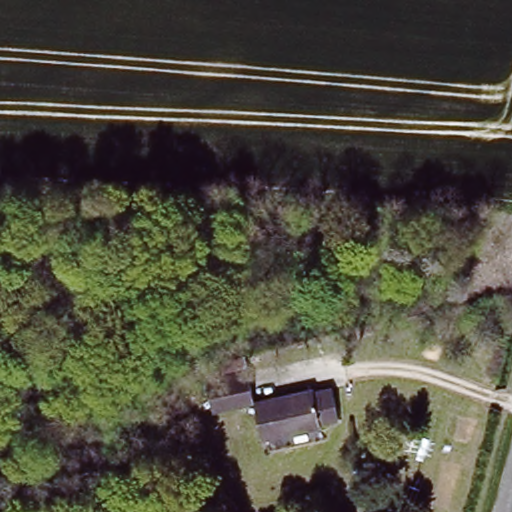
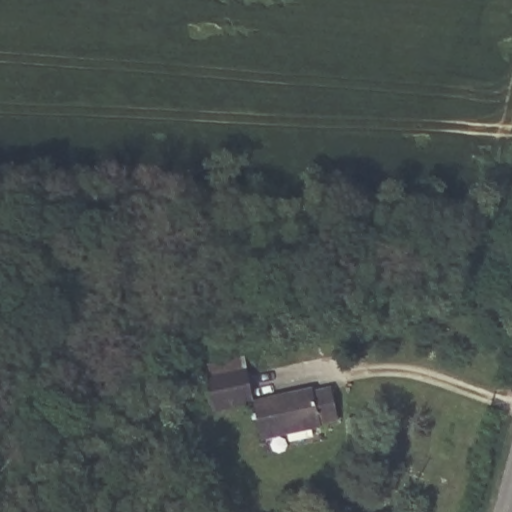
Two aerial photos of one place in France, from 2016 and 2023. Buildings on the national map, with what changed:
unchanged [(256,399),(254,400),(216,409),(208,376),(248,366),(256,399)]
unchanged [(314,385),(315,390),(331,386),(340,419),(321,424),(322,427),(265,441),(254,400),(256,399),(314,385)]

